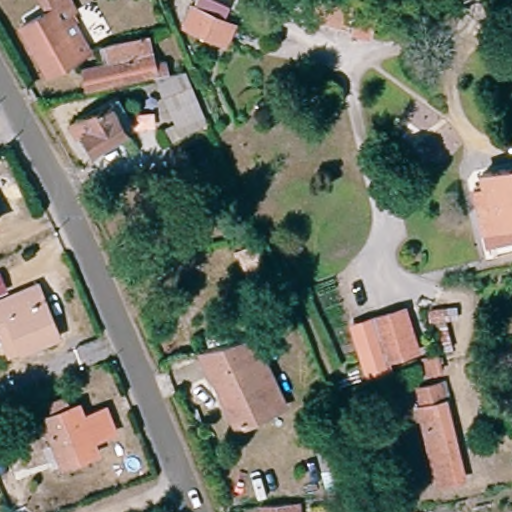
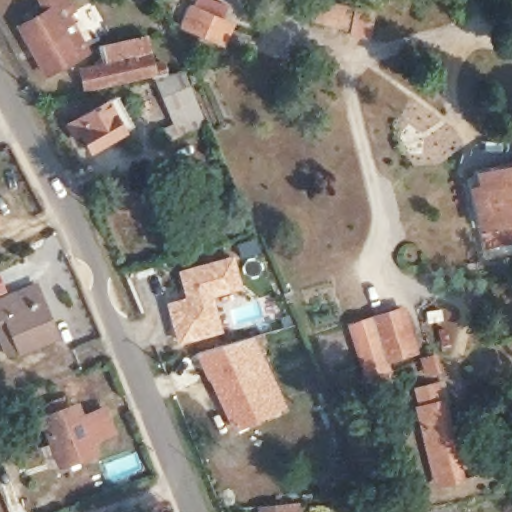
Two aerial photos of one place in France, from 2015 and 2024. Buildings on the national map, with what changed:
unchanged [(80,50),(38,73),(14,25),(36,11),(30,0),(61,0),(71,19),(64,24),(80,50)]
unchanged [(348,23),(308,18),(310,0),(349,0),(370,3),(366,34),(346,33),(348,23)]
unchanged [(224,48),(182,28),(191,9),(235,28),(224,48)]
unchanged [(79,78),(106,72),(103,56),(144,47),(151,84),(81,96),(79,78)]
unchanged [(177,138),(152,86),(183,79),(202,127),(177,138)]
unchanged [(126,131),(93,149),(84,133),(76,119),(83,115),(111,101),(126,131)]
unchanged [(483,221),(474,182),(485,179),(482,168),(512,161),(512,233),(498,236),(487,239),(483,221)]
new [(243,288),(214,296),(223,333),(177,344),(166,302),(186,296),(178,271),(235,255),(243,288)]
unchanged [(52,335),(17,351),(6,354),(0,340),(0,296),(32,283),(52,335)]
unchanged [(397,357),(361,368),(349,321),(382,312),(397,357)]
unchanged [(250,339),(281,407),(227,432),(204,382),(199,382),(191,364),(250,339)]
unchanged [(417,352),(420,368),(409,371),(404,356),(417,352)]
unchanged [(436,489),(416,409),(421,408),(417,388),(440,384),(443,403),(463,482),(436,489)]
unchanged [(45,418),(78,405),(96,449),(64,464),(45,418)]
unchanged [(0,446),(0,445),(1,446),(0,446)]
unchanged [(288,501),(289,512),(261,512),(260,504),(288,501)]

